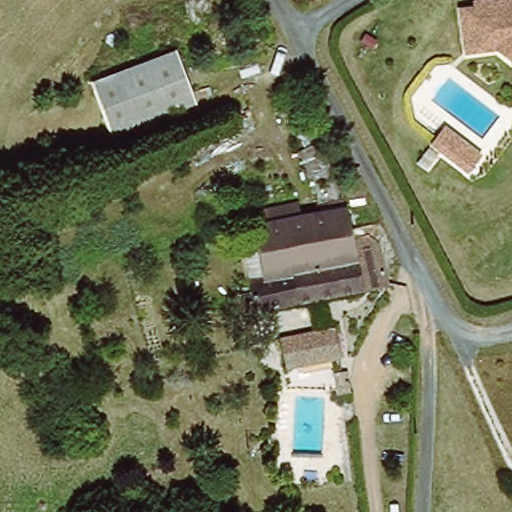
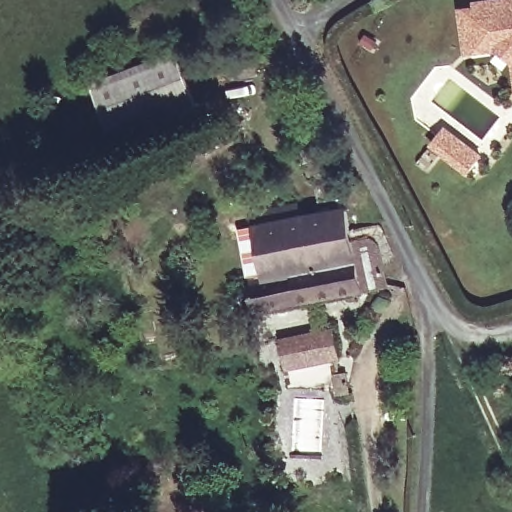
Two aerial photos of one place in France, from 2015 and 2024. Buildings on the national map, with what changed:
unchanged [(499,51),(467,55),(462,6),(512,0),(512,66),(499,51)]
unchanged [(197,101),(114,136),(92,85),(175,50),(197,101)]
unchanged [(467,174),(432,144),(445,131),(462,145),(480,158),(474,167),(467,174)]
unchanged [(257,234),(255,222),(254,209),(302,201),(305,213),(330,209),(324,171),(340,168),(345,167),(347,183),(357,241),(375,239),(382,253),(389,284),(389,285),(388,285),(255,312),(249,276),(241,237),(257,234)]
unchanged [(290,338),(340,327),(347,357),(296,368),(290,338)]

